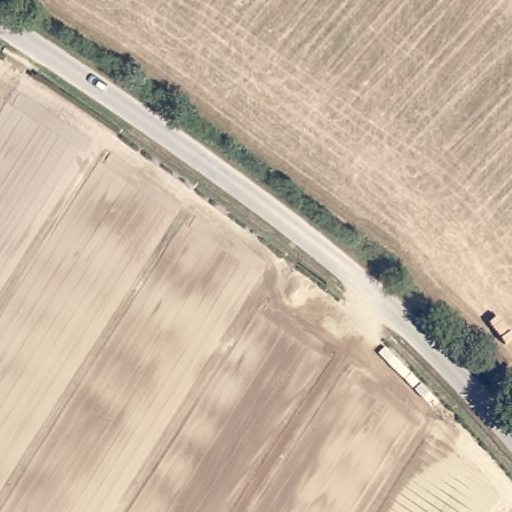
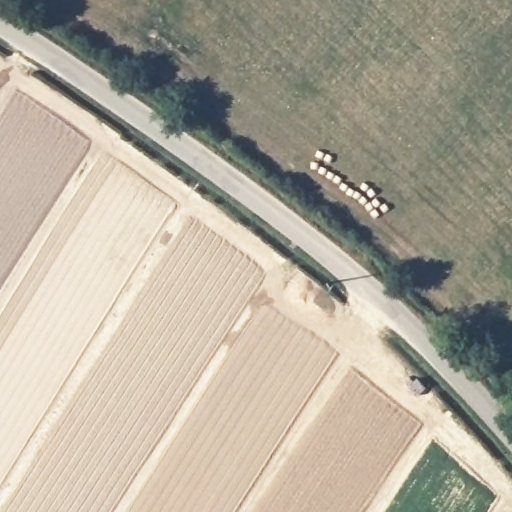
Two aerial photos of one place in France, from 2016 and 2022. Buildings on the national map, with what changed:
[]

